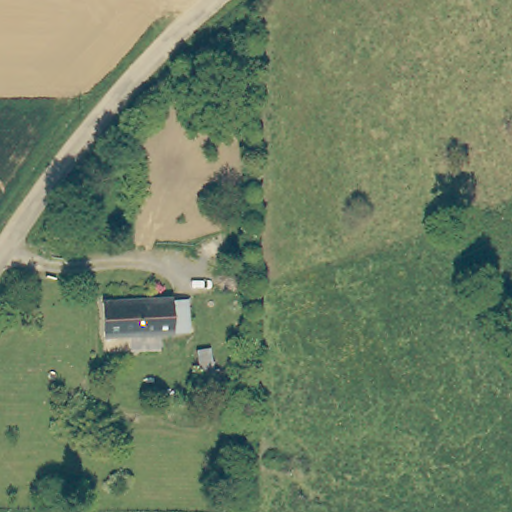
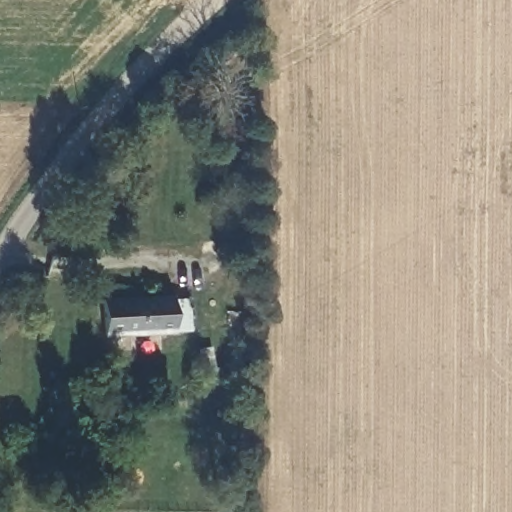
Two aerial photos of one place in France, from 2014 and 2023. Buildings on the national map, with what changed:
unchanged [(106,300),(175,298),(175,302),(194,302),(194,335),(107,337),(106,300)]

